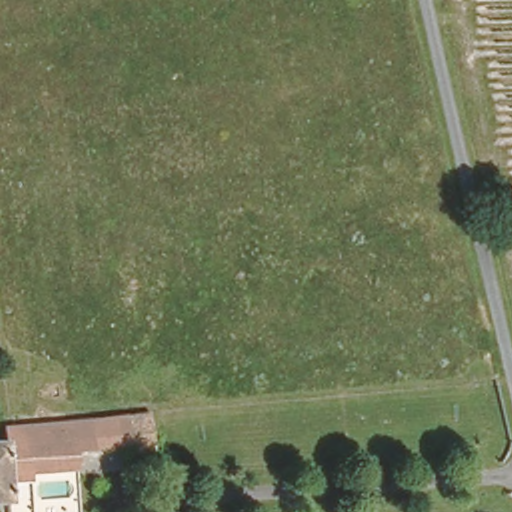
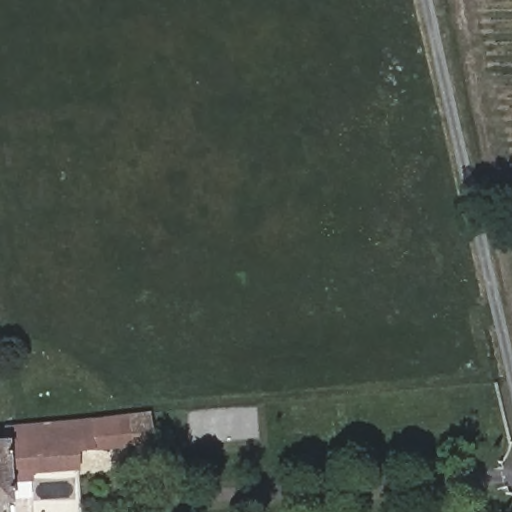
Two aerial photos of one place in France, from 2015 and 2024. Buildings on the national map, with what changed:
unchanged [(17,431),(110,419),(110,417),(149,414),(152,449),(127,451),(127,437),(80,441),(81,469),(6,475),(7,499),(0,499),(0,436),(17,435),(17,431)]

